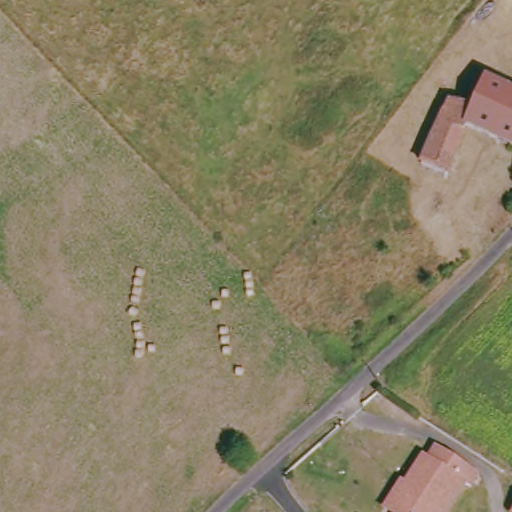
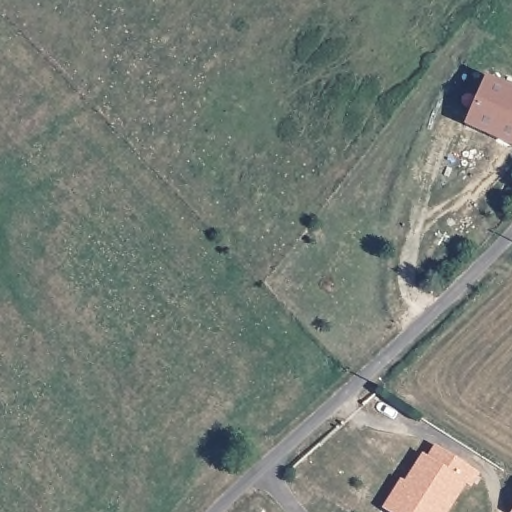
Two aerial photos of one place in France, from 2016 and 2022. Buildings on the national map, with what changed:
unchanged [(448,100),(475,104),(486,78),(512,89),(512,147),(468,128),(448,176),(420,164),(448,100)]
unchanged [(394,510),(407,489),(404,486),(422,456),(425,459),(434,447),(477,472),(472,481),(466,479),(448,512),(397,512),(394,510)]
unchanged [(400,484),(404,486),(407,489),(394,510),(397,512),(384,512),(400,484)]
unchanged [(512,509),(512,512),(510,512),(512,509)]

